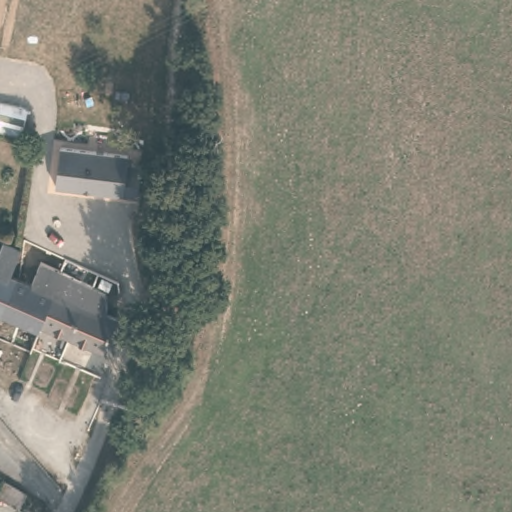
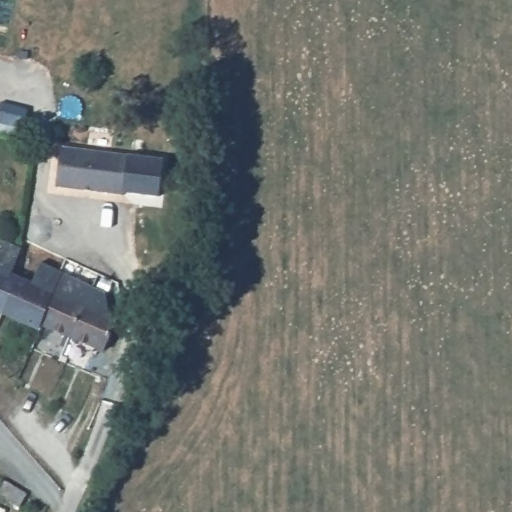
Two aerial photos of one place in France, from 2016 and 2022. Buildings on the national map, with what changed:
unchanged [(124,196),(110,194),(42,184),(47,145),(116,154),(129,156),(124,196)]
unchanged [(20,282),(8,311),(0,307),(0,253),(2,254),(7,243),(25,250),(21,277),(20,282)]
unchanged [(21,277),(55,291),(56,288),(124,316),(111,350),(46,323),(43,328),(8,311),(20,282),(21,277)]
unchanged [(20,507),(0,497),(0,488),(3,482),(27,492),(20,507)]

